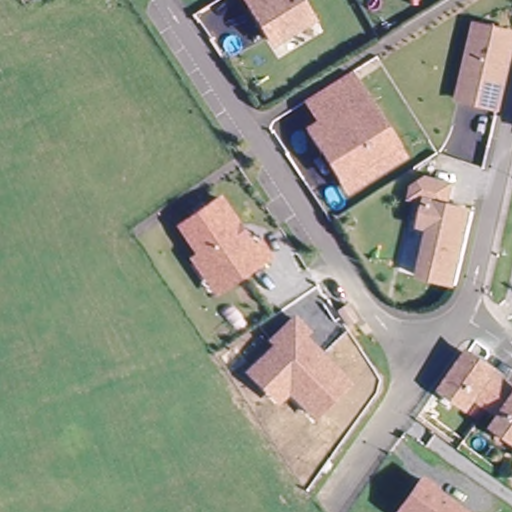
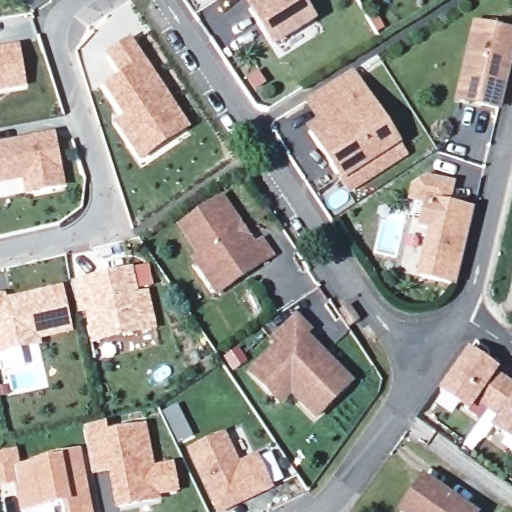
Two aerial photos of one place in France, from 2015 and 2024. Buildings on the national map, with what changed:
unchanged [(312,21),(276,43),(249,0),(299,0),(312,21)]
unchanged [(457,103),(460,91),(476,25),(512,34),(512,47),(497,108),(482,105),(481,108),(457,103)]
new [(191,127),(141,163),(113,123),(124,115),(106,89),(122,78),(105,57),(132,39),(191,127)]
new [(27,89),(0,93),(0,47),(21,43),(27,89)]
unchanged [(315,132),(324,126),(309,103),(352,75),(397,145),(347,177),(329,148),(326,150),(315,132)]
new [(27,198),(22,179),(0,184),(0,142),(56,131),(64,189),(27,198)]
unchanged [(397,145),(406,158),(352,192),(344,179),(326,150),(329,148),(347,177),(397,145)]
unchanged [(430,229),(420,226),(426,202),(411,199),(413,187),(427,180),(451,186),(447,206),(473,212),(456,285),(419,277),(430,229)]
unchanged [(209,282),(196,263),(197,258),(200,255),(181,227),(221,200),(254,249),(261,244),(270,258),(229,289),(218,297),(209,282)]
new [(92,346),(84,312),(80,313),(73,282),(132,270),(138,294),(149,292),(157,329),(92,346)]
new [(7,297),(62,284),(74,330),(42,338),(42,344),(0,354),(0,293),(5,291),(7,297)]
unchanged [(359,321),(350,327),(339,311),(348,305),(359,321)]
unchanged [(322,351),(350,379),(316,412),(280,375),(269,386),(251,368),(278,341),(273,336),(295,314),(308,328),(297,338),(317,357),(322,351)]
unchanged [(483,367),(468,389),(453,379),(447,389),(422,371),(442,341),(447,335),(487,363),(483,367)]
unchanged [(501,427),(476,409),(482,399),(468,389),(483,367),(487,363),(512,381),(512,411),(501,427)]
unchanged [(448,400),(457,387),(465,393),(462,398),(457,405),(448,400)]
new [(107,432),(146,426),(155,464),(173,460),(180,493),(161,497),(162,502),(120,512),(118,512),(110,472),(94,473),(84,428),(106,423),(107,432)]
unchanged [(507,431),(512,423),(512,435),(507,431)]
new [(257,454),(272,489),(225,512),(216,512),(187,449),(224,432),(240,463),(257,454)]
new [(80,447),(93,512),(63,512),(62,504),(33,512),(21,512),(16,487),(0,490),(0,451),(15,446),(17,460),(80,447)]
unchanged [(402,512),(423,480),(467,512),(402,512)]

